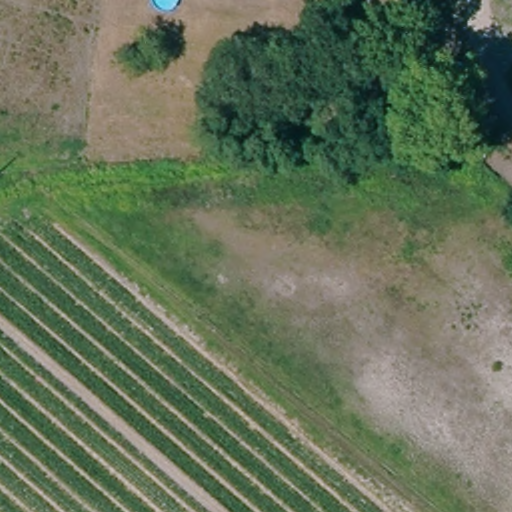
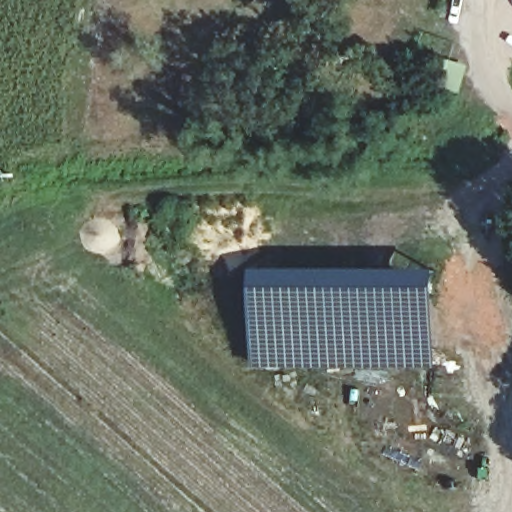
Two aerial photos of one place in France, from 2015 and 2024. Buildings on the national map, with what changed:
demolished [(19,123),(20,146),(0,146),(0,123),(19,123)]
new [(435,368),(252,368),(252,269),(437,267),(435,368)]

